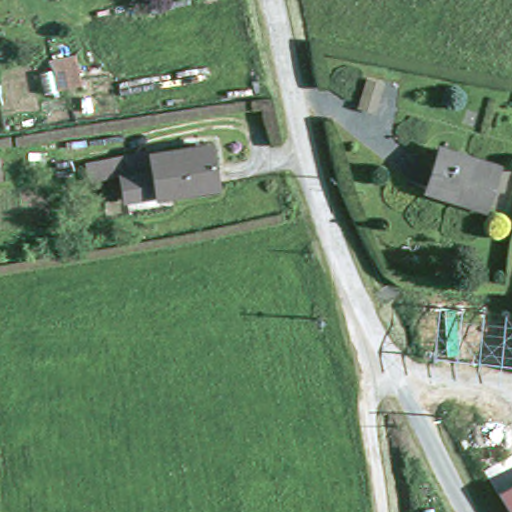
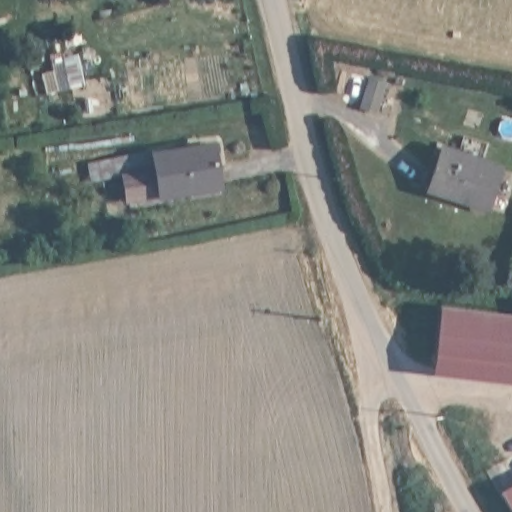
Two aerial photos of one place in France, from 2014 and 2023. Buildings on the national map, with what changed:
unchanged [(392,101),(381,128),(367,122),(378,94),(392,101)]
unchanged [(126,178),(136,178),(155,175),(152,158),(213,151),(218,193),(157,198),(140,199),(127,200),(126,178)]
unchanged [(503,183),(488,220),(430,196),(445,159),(503,183)]
new [(512,313),(512,385),(430,377),(438,305),(512,313)]
unchanged [(512,484),(512,511),(500,492),(512,484)]

